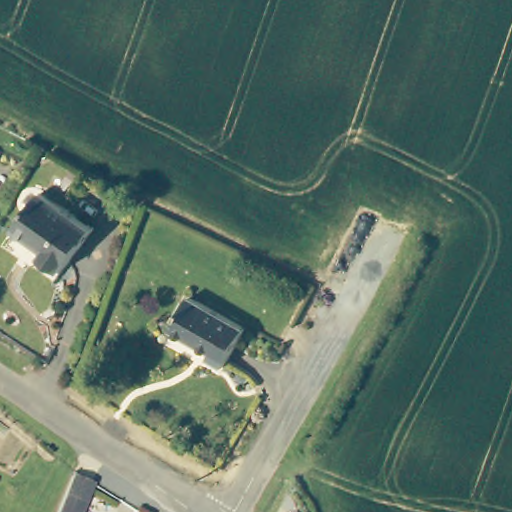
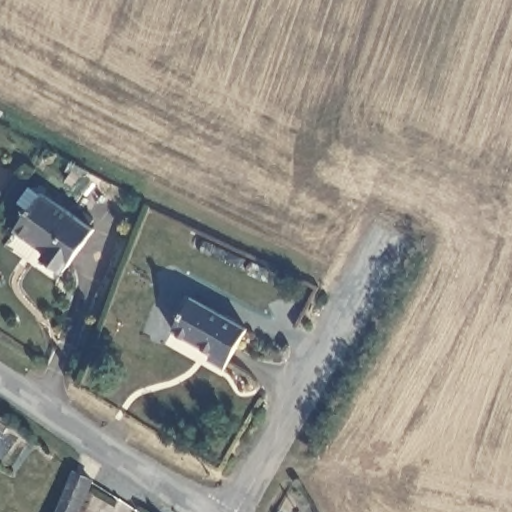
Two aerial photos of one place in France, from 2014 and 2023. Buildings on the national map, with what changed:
unchanged [(42,257),(46,251),(15,230),(41,193),(92,229),(62,271),(42,257)]
unchanged [(209,353),(212,347),(172,325),(191,292),(246,323),(225,362),(209,353)]
unchanged [(57,512),(72,474),(92,482),(80,512),(57,512)]

